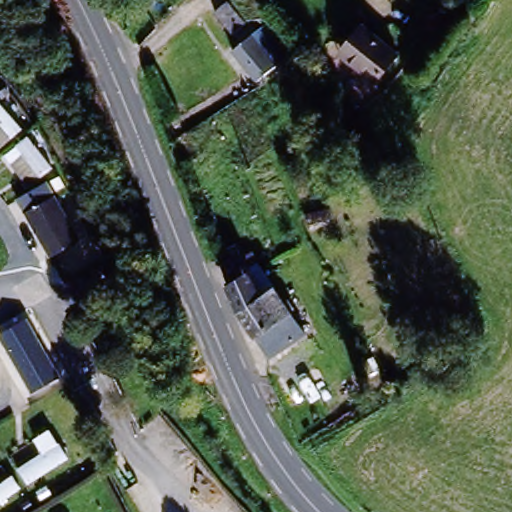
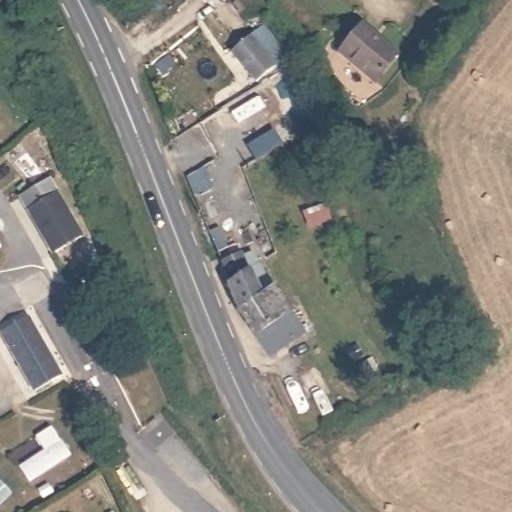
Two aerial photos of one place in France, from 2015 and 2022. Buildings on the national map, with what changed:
unchanged [(224,2),(241,26),(227,35),(211,12),(224,2)]
unchanged [(399,53),(380,81),(344,57),(363,29),(399,53)]
unchanged [(228,50),(248,36),(253,43),(262,37),(275,57),(266,63),(271,71),(250,84),(228,50)]
unchanged [(51,184),(81,241),(53,255),(23,199),(51,184)]
unchanged [(291,343),(271,354),(264,342),(252,338),(242,314),(227,282),(233,279),(226,259),(244,251),(250,267),(269,300),(287,290),(304,318),(316,338),(297,351),(291,343)]
unchanged [(27,319),(63,379),(37,394),(2,334),(27,319)]

